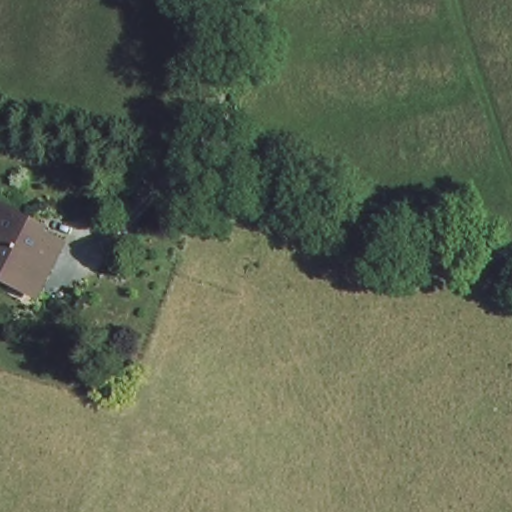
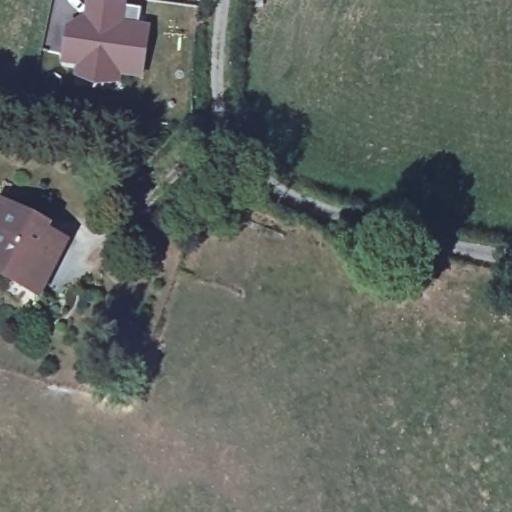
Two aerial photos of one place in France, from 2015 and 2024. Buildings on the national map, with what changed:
new [(125,7),(141,9),(137,25),(149,27),(141,81),(119,77),(118,86),(72,80),(74,68),(58,66),(63,26),(82,16),(84,0),(101,0),(126,4),(125,7)]
unchanged [(35,281),(11,279),(11,266),(0,266),(0,218),(16,219),(16,225),(52,227),(51,257),(36,257),(35,281)]

